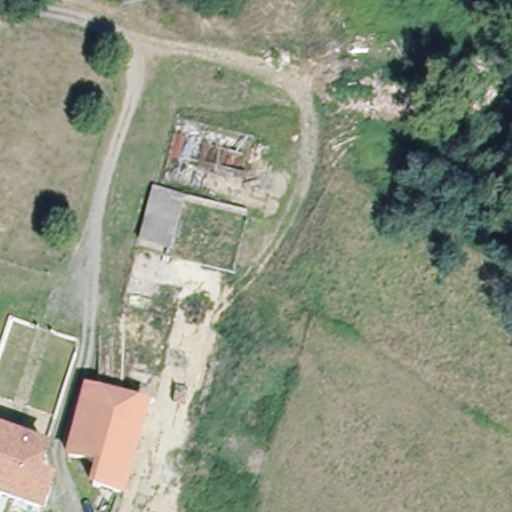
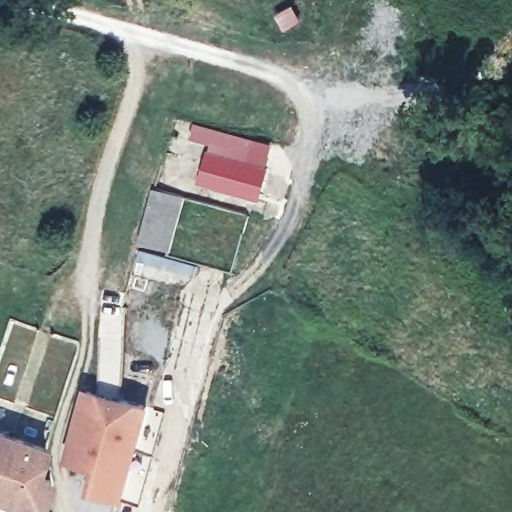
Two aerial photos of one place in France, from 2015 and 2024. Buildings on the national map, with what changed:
new [(209,149),(210,144),(190,138),(193,123),(272,143),(266,166),(209,149)]
new [(269,167),(261,198),(199,182),(209,149),(269,167)]
unchanged [(145,242),(161,185),(189,195),(174,250),(145,242)]
unchanged [(129,493),(101,484),(109,461),(76,452),(95,383),(130,394),(156,401),(135,468),(129,493)]
unchanged [(40,477),(52,481),(44,511),(0,498),(0,435),(48,450),(40,477)]

